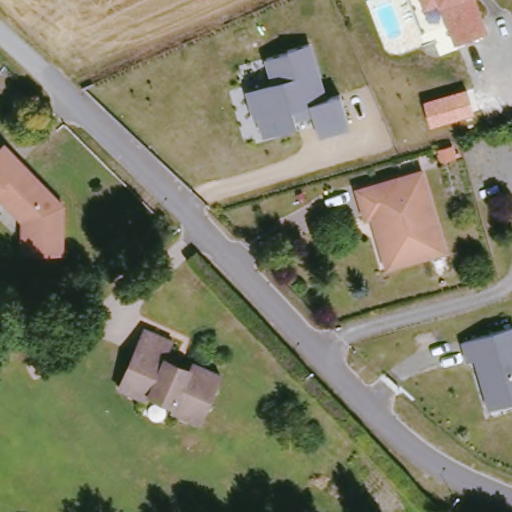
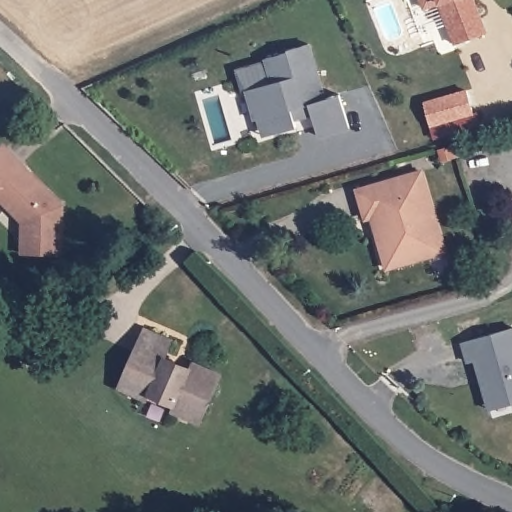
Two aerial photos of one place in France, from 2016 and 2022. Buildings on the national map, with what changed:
unchanged [(456,45),(440,6),(425,11),(421,0),(477,0),(477,2),(490,33),(456,45)]
unchanged [(320,138),(314,116),(296,121),(298,127),(265,139),(248,90),(273,81),(266,58),(312,44),(328,99),(344,96),(352,130),(320,138)]
unchanged [(21,163),(62,202),(63,251),(27,251),(26,221),(11,206),(16,200),(2,187),(0,189),(0,154),(15,169),(21,163)]
unchanged [(427,253),(397,262),(390,258),(383,240),(387,232),(379,209),(363,213),(356,185),(421,167),(441,236),(445,248),(427,253)]
unchanged [(210,392),(195,423),(165,411),(168,403),(147,394),(145,401),(116,388),(143,328),(171,341),(163,357),(185,367),(187,363),(210,373),(217,377),(210,392)]
unchanged [(490,410),(476,362),(469,365),(463,342),(512,329),(512,404),(490,410)]
unchanged [(418,512),(399,512),(409,502),(418,512)]

